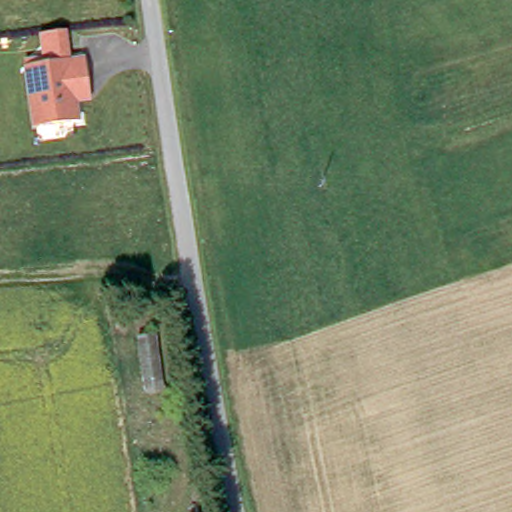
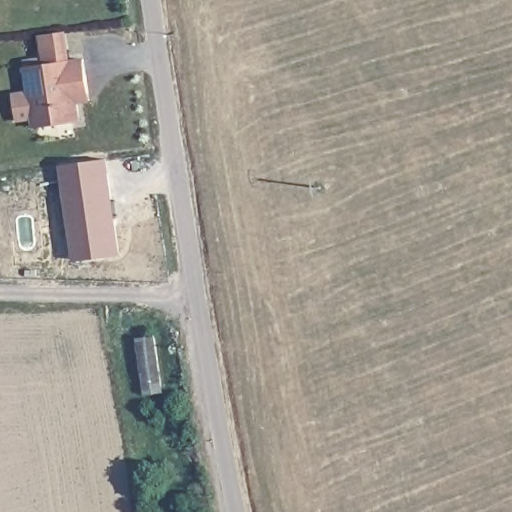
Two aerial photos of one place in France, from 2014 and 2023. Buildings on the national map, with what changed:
unchanged [(25,65),(83,55),(91,103),(77,103),(79,121),(31,125),(25,65)]
new [(119,254),(74,260),(61,164),(106,158),(112,199),(115,220),(119,254)]
unchanged [(174,378),(155,380),(147,334),(147,326),(159,325),(166,324),(174,378)]

